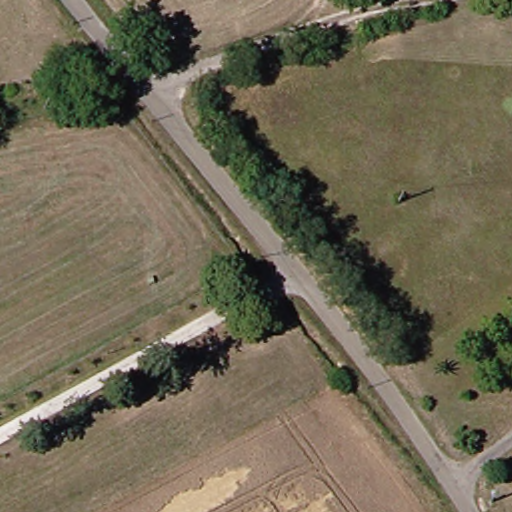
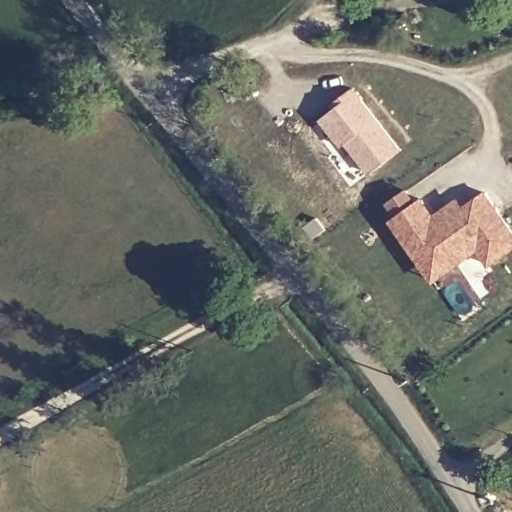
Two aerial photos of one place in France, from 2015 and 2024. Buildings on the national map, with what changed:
new [(371,174),(346,143),(342,146),(320,119),(334,108),(331,103),(353,85),(403,149),(371,174)]
new [(428,217),(442,208),(452,201),(460,212),(450,219),(483,196),(512,238),(512,247),(484,266),(469,245),(440,266),(413,226),(396,238),(385,221),(416,199),(428,217)]
new [(413,226),(440,266),(469,245),(472,249),(423,283),(396,238),(413,226)]

